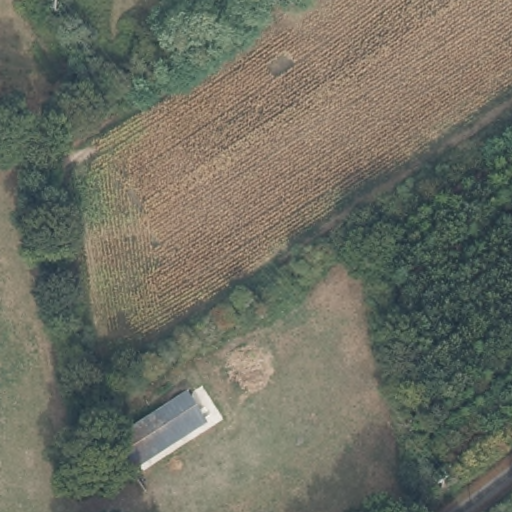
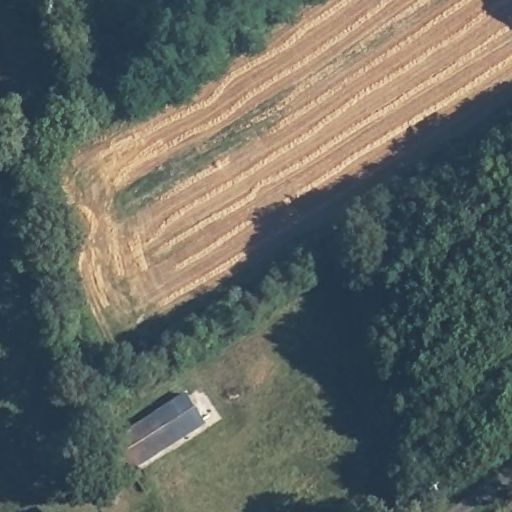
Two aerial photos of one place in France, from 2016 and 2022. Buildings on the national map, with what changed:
unchanged [(177,387),(203,419),(122,477),(94,442),(177,387)]

